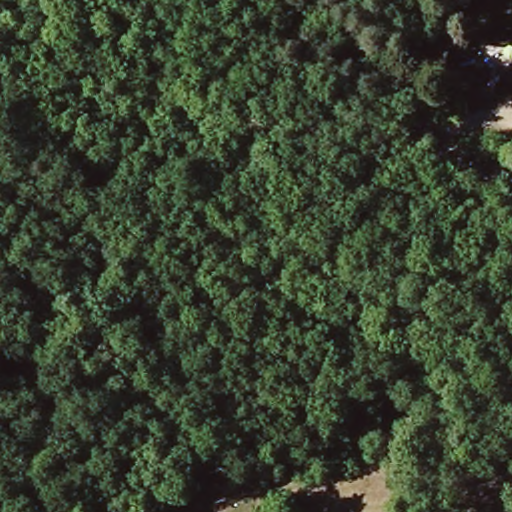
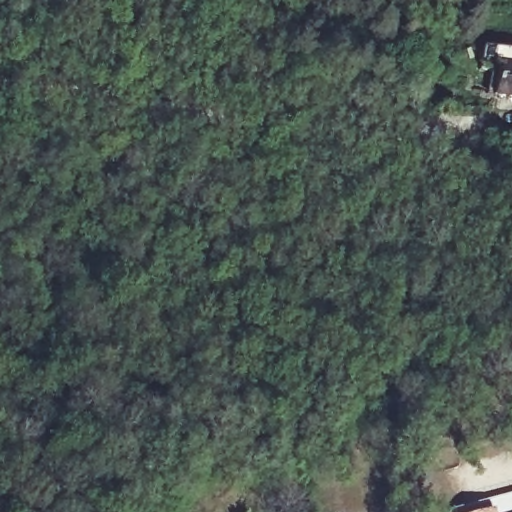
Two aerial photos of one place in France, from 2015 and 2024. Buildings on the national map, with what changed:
unchanged [(512,66),(512,91),(496,89),(499,65),(512,66)]
new [(512,493),(512,512),(469,512),(485,507),(484,500),(512,493)]

